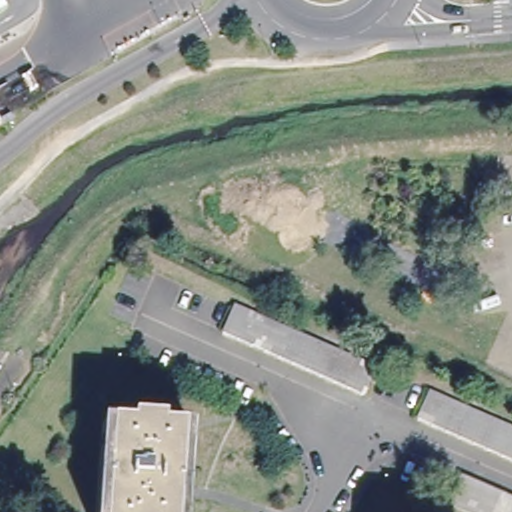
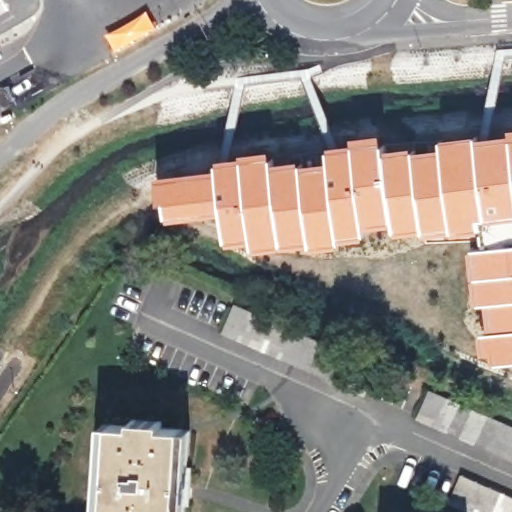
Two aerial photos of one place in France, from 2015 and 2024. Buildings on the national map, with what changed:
new [(276,160),(327,158),(327,145),(352,141),(352,136),(385,132),(387,145),(439,144),(438,137),(509,131),(509,127),(512,127),(512,361),(492,363),(492,355),(484,356),(481,332),(487,331),(485,310),(476,310),(467,240),(424,241),(423,234),(369,231),(370,237),(326,245),(252,250),(252,244),(227,245),(222,214),(217,166),(216,158),(272,148),(276,160)]
new [(217,166),(222,214),(166,219),(157,176),(217,166)]
unchanged [(373,366),(361,393),(221,333),(234,304),(373,366)]
unchanged [(431,390),(512,425),(512,457),(418,416),(431,390)]
unchanged [(97,512),(106,420),(112,421),(134,422),(135,416),(166,420),(166,426),(186,427),(194,428),(186,512),(97,512)]
unchanged [(512,512),(472,512),(446,501),(458,472),(512,495),(512,512)]

